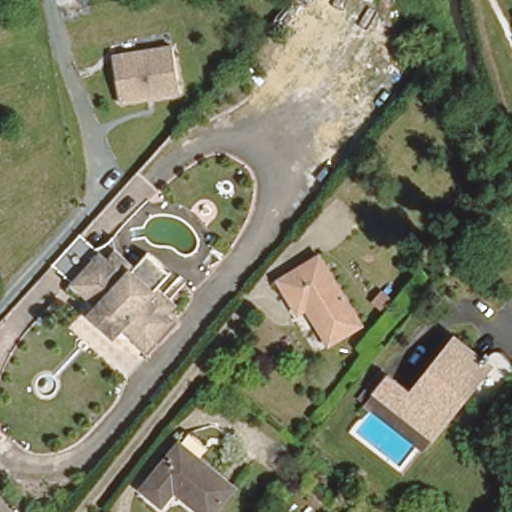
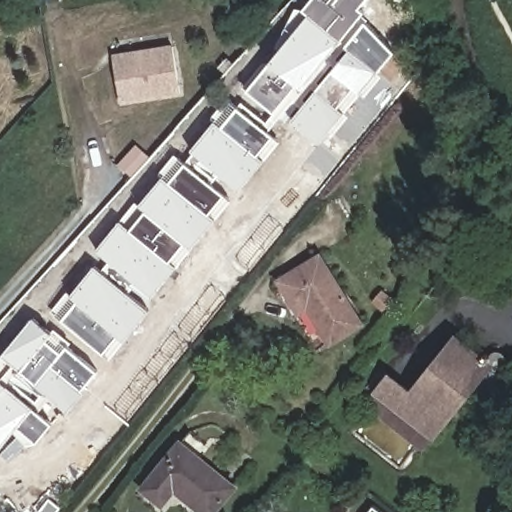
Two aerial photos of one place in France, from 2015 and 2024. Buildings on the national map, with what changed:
new [(359,8),(364,12),(302,87),(298,83),(275,113),(248,90),(269,63),(295,7),(304,9),(311,0),(366,0),(359,8)]
new [(394,51),(379,70),(360,92),(354,87),(339,107),(344,112),(319,143),(292,120),(333,70),(350,49),(346,45),(366,22),(394,51)]
unchanged [(122,55),(174,47),(182,94),(144,99),(121,103),(114,56),(122,55)]
new [(279,142),(240,190),(191,151),(230,103),(279,142)]
new [(136,145),(151,159),(133,178),(118,164),(136,145)]
new [(139,207),(164,177),(160,172),(174,155),(232,199),(153,297),(96,251),(134,204),(139,207)]
unchanged [(314,246),(357,314),(324,334),(302,296),(293,302),(274,271),(314,246)]
demolished [(141,284),(138,288),(113,319),(100,309),(107,300),(84,282),(102,260),(109,265),(116,256),(134,270),(133,272),(144,281),(141,284)]
new [(69,297),(94,267),(149,310),(110,357),(50,309),(64,293),(69,297)]
demolished [(156,291),(158,289),(161,291),(178,304),(170,314),(180,321),(163,343),(135,322),(128,331),(113,319),(138,288),(141,284),(144,281),(156,291)]
new [(85,391),(69,411),(51,396),(39,411),(53,423),(37,442),(26,446),(13,431),(3,444),(0,449),(0,358),(4,354),(33,317),(53,333),(55,328),(73,342),(69,346),(98,371),(83,389),(85,391)]
unchanged [(358,403),(383,373),(412,395),(454,340),(491,369),(433,444),(430,442),(421,453),(416,449),(373,415),(358,403)]
demolished [(57,380),(58,381),(59,382),(59,383),(59,384),(59,385),(59,386),(58,387),(58,388),(57,388),(56,389),(55,389),(55,390),(54,390),(53,390),(53,391),(51,390),(50,390),(49,390),(48,389),(48,388),(47,388),(46,387),(46,386),(45,385),(45,384),(45,383),(46,382),(46,381),(47,380),(48,379),(49,378),(50,378),(51,378),(53,377),(54,378),(55,378),(56,379),(57,380)]
unchanged [(236,492),(219,512),(196,512),(175,495),(163,510),(143,493),(179,447),(236,492)]

